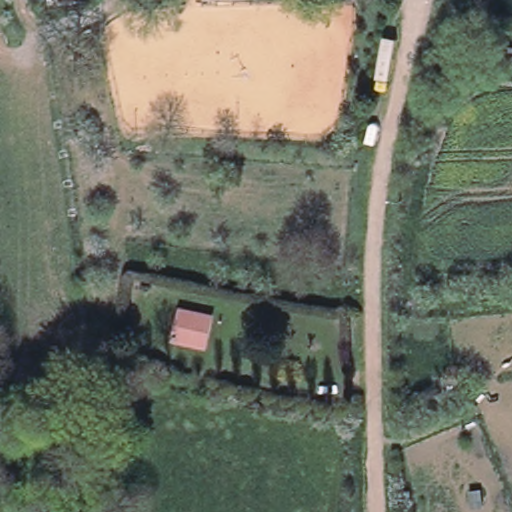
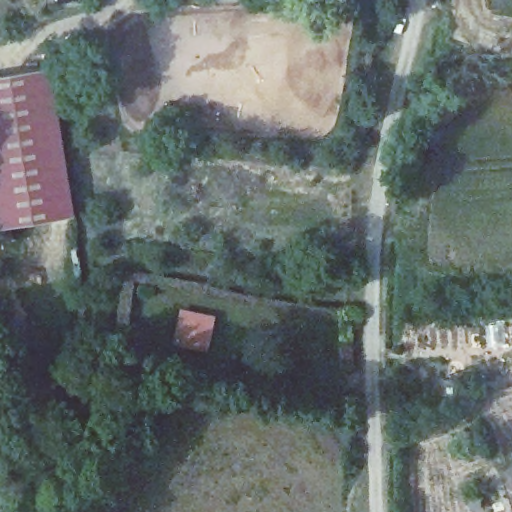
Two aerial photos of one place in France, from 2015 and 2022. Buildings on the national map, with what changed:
new [(74,213),(0,225),(0,72),(50,64),(74,213)]
unchanged [(202,305),(197,335),(181,333),(186,303),(202,305)]
unchanged [(463,391),(448,392),(448,383),(447,378),(462,377),(462,381),(463,391)]

